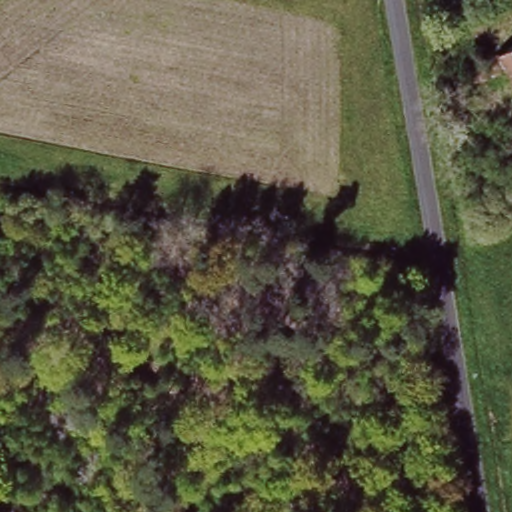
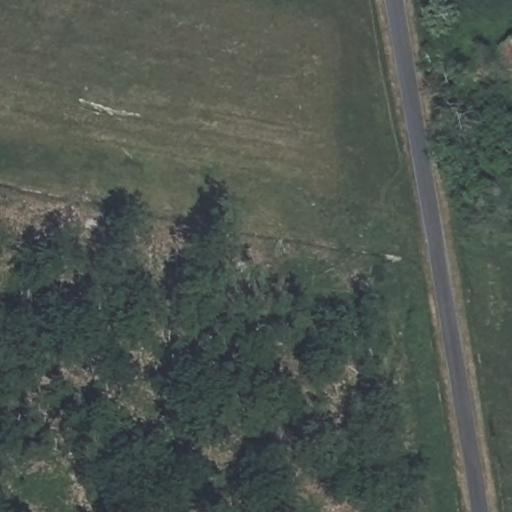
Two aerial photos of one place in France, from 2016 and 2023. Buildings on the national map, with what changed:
unchanged [(512,34),(512,79),(493,44),(512,34)]
unchanged [(492,144),(512,133),(512,164),(506,168),(492,144)]

